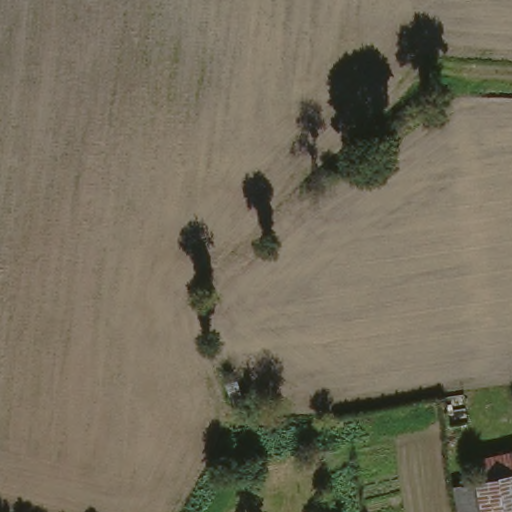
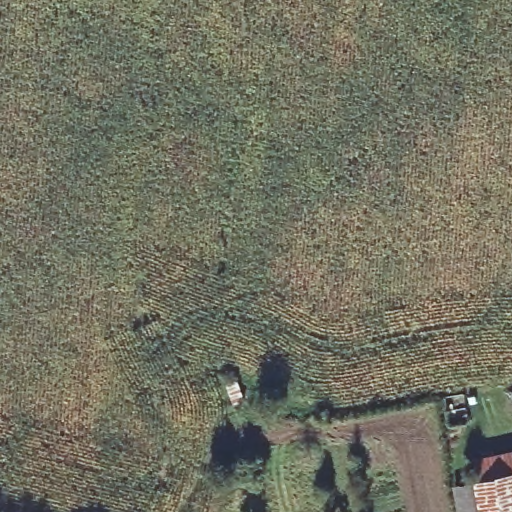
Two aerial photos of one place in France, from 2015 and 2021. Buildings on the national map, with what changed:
unchanged [(477,481),(472,459),(512,451),(512,512),(483,512),(477,481)]
unchanged [(483,512),(461,512),(457,486),(477,481),(483,512)]

